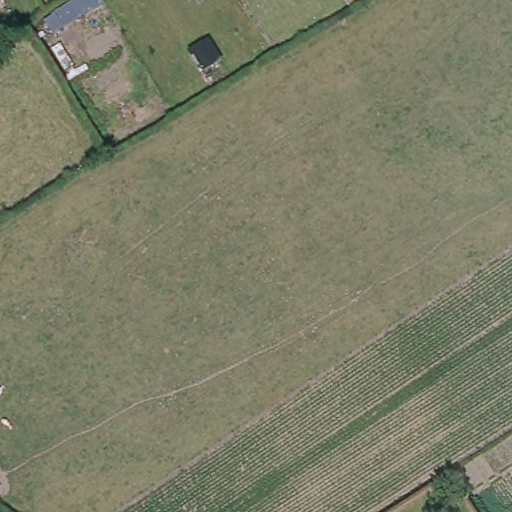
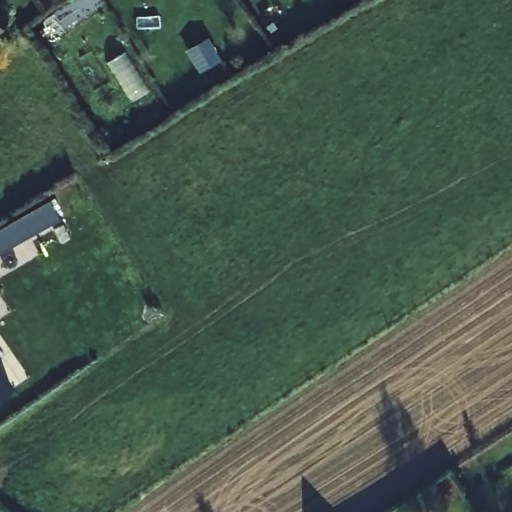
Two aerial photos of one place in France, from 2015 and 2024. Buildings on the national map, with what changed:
new [(0,229),(50,200),(61,220),(0,255),(0,229)]
new [(0,397),(0,370),(12,388),(0,397)]

